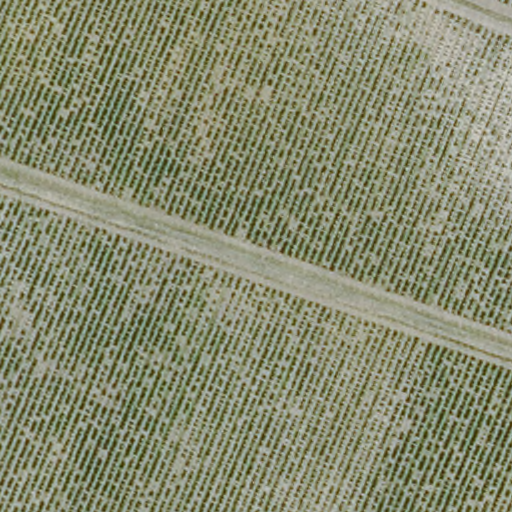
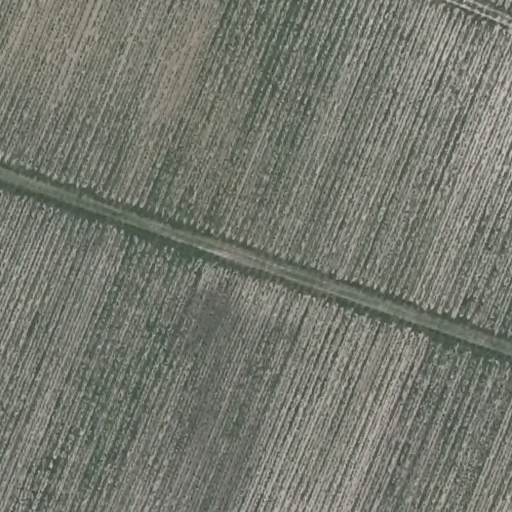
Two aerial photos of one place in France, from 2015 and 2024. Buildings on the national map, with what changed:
[]

